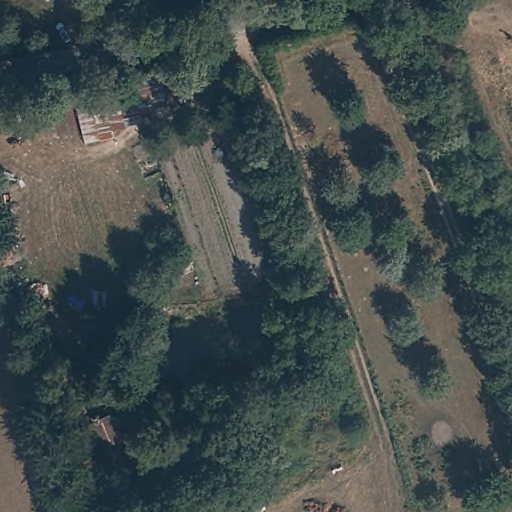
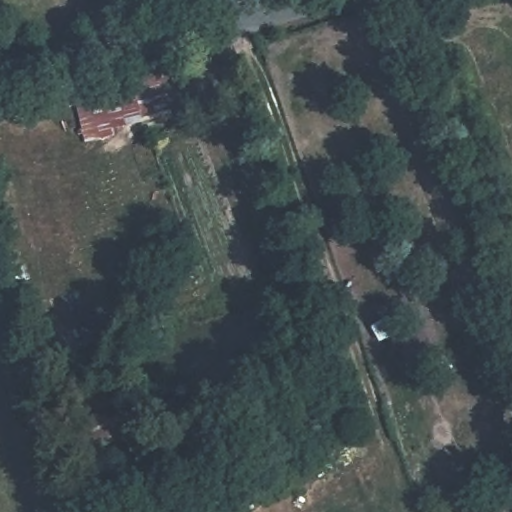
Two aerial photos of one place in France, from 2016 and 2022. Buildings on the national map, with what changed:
unchanged [(163,78),(171,105),(144,109),(146,117),(115,124),(117,134),(87,137),(80,101),(163,78)]

